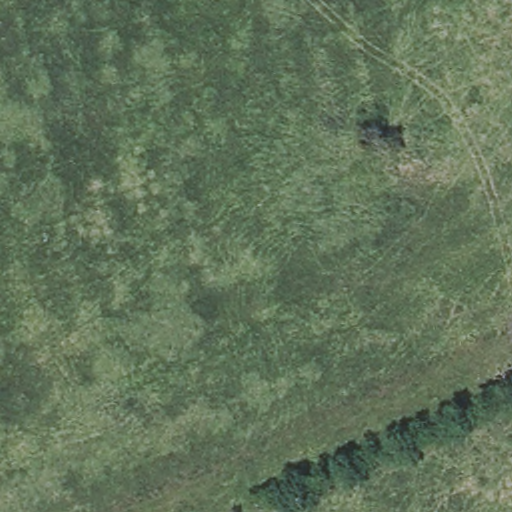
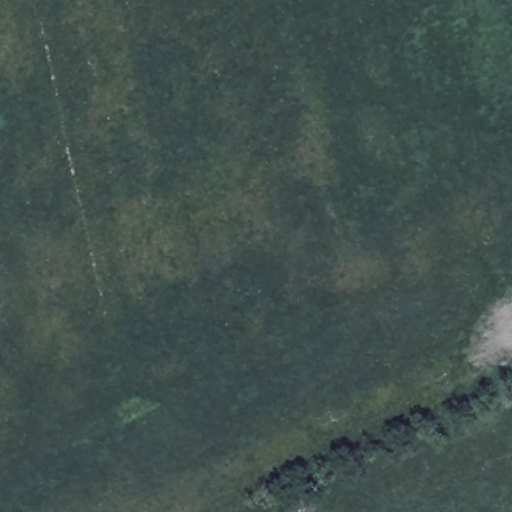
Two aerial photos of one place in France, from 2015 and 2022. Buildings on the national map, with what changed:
[]

